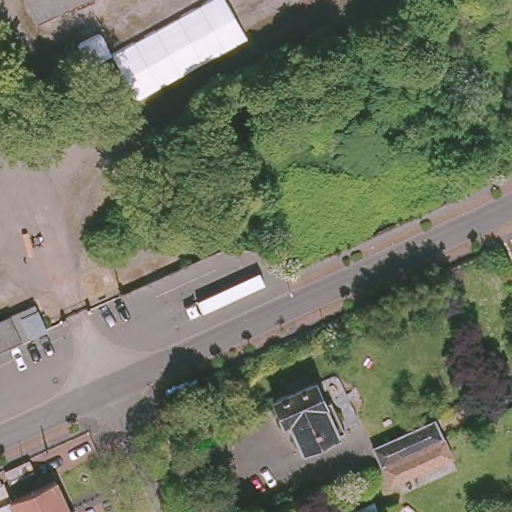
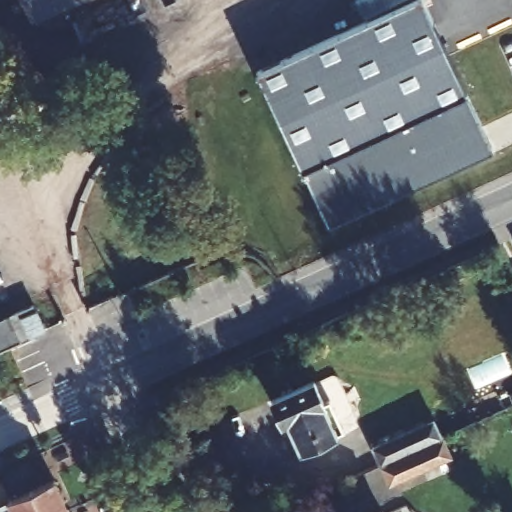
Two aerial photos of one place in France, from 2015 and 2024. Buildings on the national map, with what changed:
unchanged [(26,0),(74,0),(35,18),(26,0)]
new [(492,152),(330,226),(302,170),(256,74),(416,0),(426,0),(467,92),(492,152)]
unchanged [(10,312),(23,339),(22,340),(0,349),(0,317),(8,313),(10,312)]
unchanged [(42,333),(27,340),(18,319),(32,313),(33,313),(42,333)]
unchanged [(322,400),(328,397),(342,428),(300,447),(287,419),(280,422),(270,398),(312,379),(322,400)]
unchanged [(400,485),(394,488),(385,468),(383,468),(375,451),(438,422),(445,441),(423,451),(411,456),(420,477),(400,485)]
unchanged [(12,497),(56,476),(69,505),(53,512),(14,512),(18,510),(12,497)]
unchanged [(69,505),(72,512),(53,512),(69,505)]

